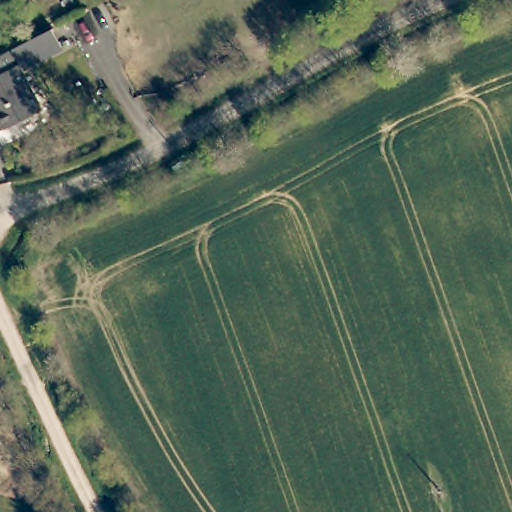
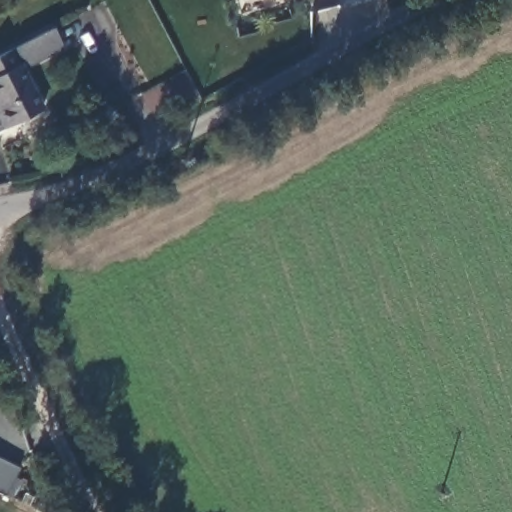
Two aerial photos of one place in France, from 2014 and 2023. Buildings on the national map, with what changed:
unchanged [(18,46),(54,28),(65,49),(29,68),(49,106),(13,125),(0,131),(0,55),(18,46)]
new [(19,468),(6,496),(0,492),(0,458),(19,468)]

